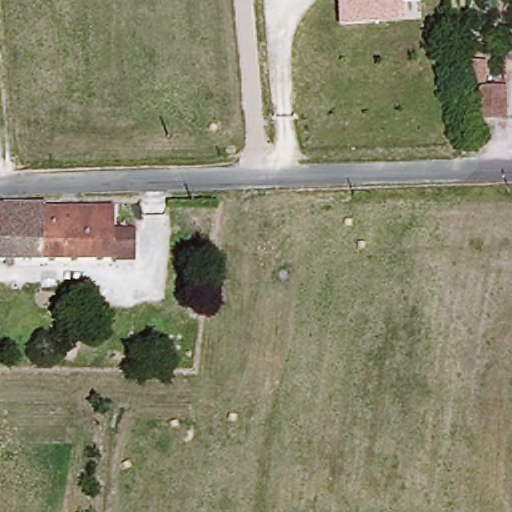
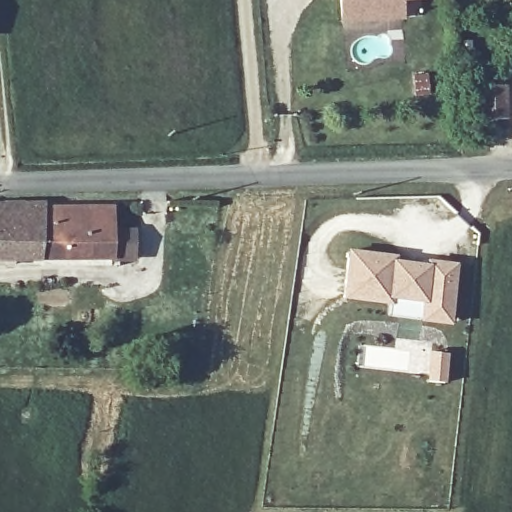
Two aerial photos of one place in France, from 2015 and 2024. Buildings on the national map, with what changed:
unchanged [(338,0),(409,0),(403,1),(404,19),(337,24),(338,0)]
unchanged [(463,67),(484,67),(485,87),(464,89),(463,67)]
unchanged [(483,126),(481,94),(503,92),(505,125),(483,126)]
unchanged [(44,202),(45,207),(42,258),(0,260),(0,203),(44,202)]
unchanged [(111,259),(88,259),(42,258),(45,207),(111,207),(111,222),(111,237),(122,236),(139,235),(139,257),(111,259)]
new [(388,292),(388,298),(342,293),(347,246),(393,252),(392,257),(426,260),(426,256),(453,259),(447,317),(420,315),(387,311),(388,292)]
new [(442,377),(427,375),(430,346),(445,347),(442,377)]

